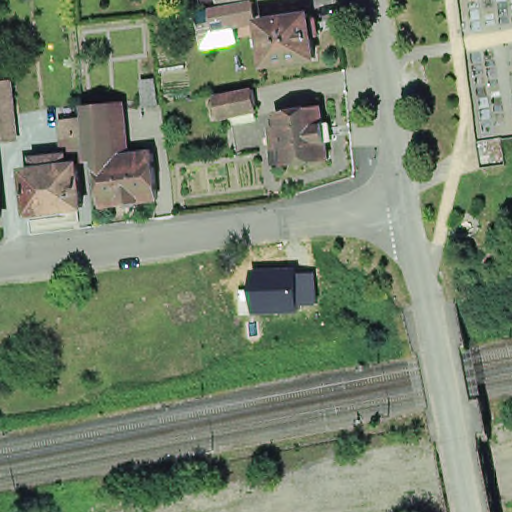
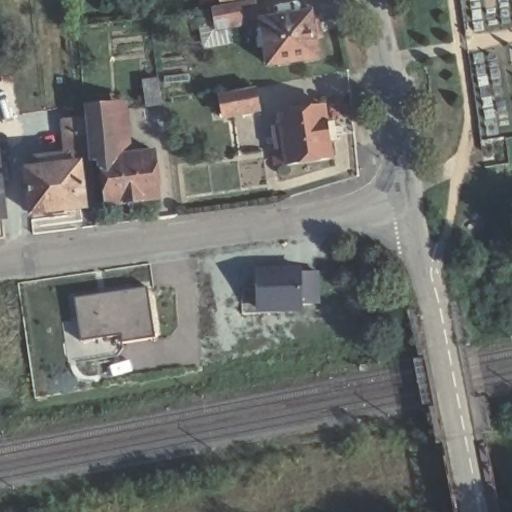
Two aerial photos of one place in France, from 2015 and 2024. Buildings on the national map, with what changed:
unchanged [(236,2),(246,0),(259,0),(263,15),(240,20),(220,23),(216,5),(236,2)]
unchanged [(274,62),(266,18),(314,11),(321,55),(274,62)]
unchanged [(148,104),(144,79),(158,77),(161,102),(148,104)]
unchanged [(1,140),(0,121),(0,81),(7,79),(17,79),(20,113),(23,138),(13,139),(1,140)]
unchanged [(227,117),(223,97),(259,90),(263,110),(227,117)]
unchanged [(30,168),(41,167),(40,157),(69,152),(67,131),(66,119),(91,116),(89,103),(119,99),(125,155),(105,157),(95,159),(84,160),(90,204),(36,211),(30,168)]
unchanged [(328,104),(336,157),(291,163),(289,147),(282,148),(280,136),(279,128),(286,126),(284,111),(328,104)]
unchanged [(0,216),(0,147),(8,215),(0,216)]
unchanged [(166,195),(111,201),(105,157),(125,155),(160,151),(166,195)]
unchanged [(241,287),(256,286),(254,269),(286,268),(286,272),(317,271),(318,302),(301,302),(301,307),(277,308),(278,311),(241,312),(241,307),(241,287)]
new [(153,335),(119,340),(118,335),(78,341),(72,299),(146,289),(153,335)]

